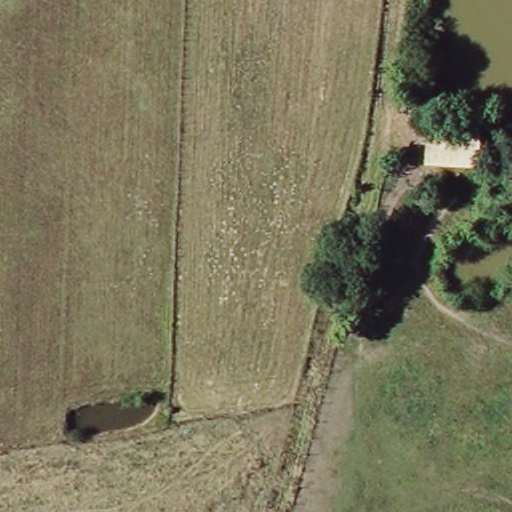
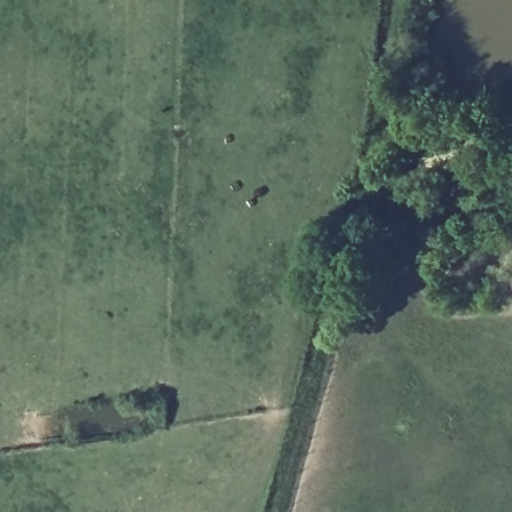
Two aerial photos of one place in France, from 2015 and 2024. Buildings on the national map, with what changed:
unchanged [(469,164),(421,163),(423,123),(473,124),(469,164)]

